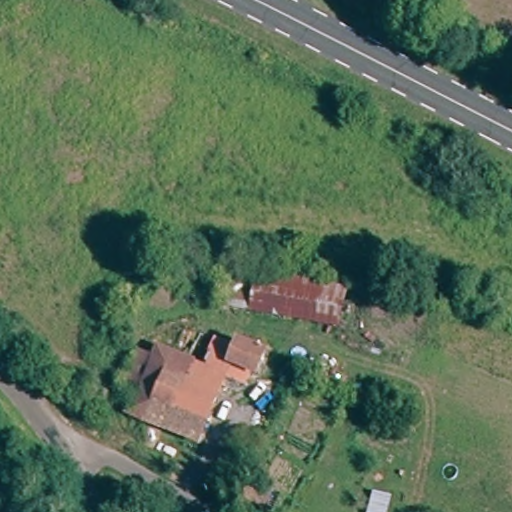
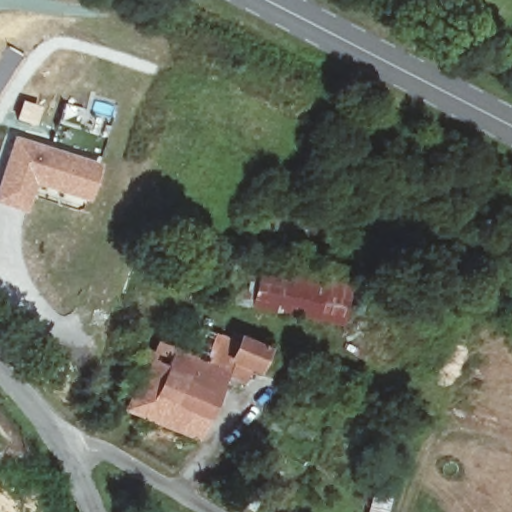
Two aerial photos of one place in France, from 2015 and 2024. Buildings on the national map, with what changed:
new [(101,165),(89,202),(36,185),(26,212),(0,204),(0,185),(16,137),(101,165)]
unchanged [(289,316),(226,307),(231,272),(294,283),(289,316)]
unchanged [(295,275),(348,285),(345,324),(289,316),(294,283),(295,275)]
unchanged [(188,353),(200,323),(242,340),(244,336),(272,346),(261,366),(235,357),(205,435),(133,406),(140,388),(120,380),(136,339),(155,347),(157,342),(188,353)]
unchanged [(87,373),(69,394),(55,383),(72,363),(87,373)]

